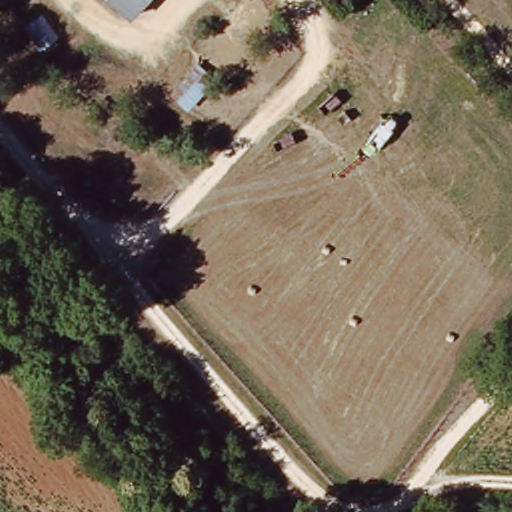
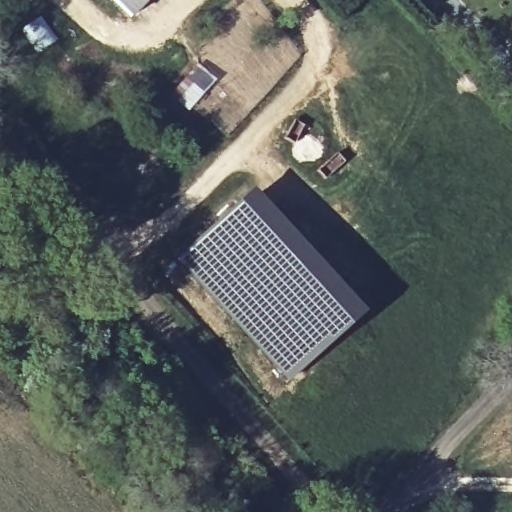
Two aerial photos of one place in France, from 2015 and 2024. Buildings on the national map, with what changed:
unchanged [(110,0),(147,0),(128,18),(110,0)]
new [(175,260),(252,192),(362,316),(287,382),(175,260)]

